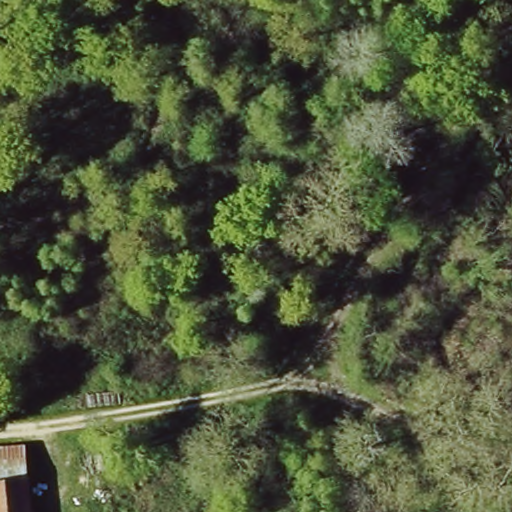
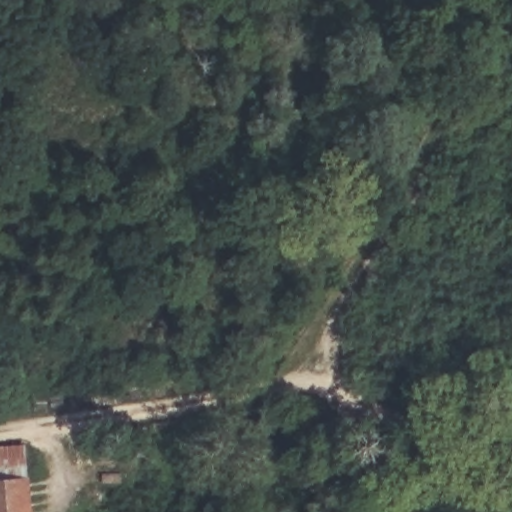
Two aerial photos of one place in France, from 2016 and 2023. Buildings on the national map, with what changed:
unchanged [(26,440),(34,512),(0,512),(0,442),(26,440)]

